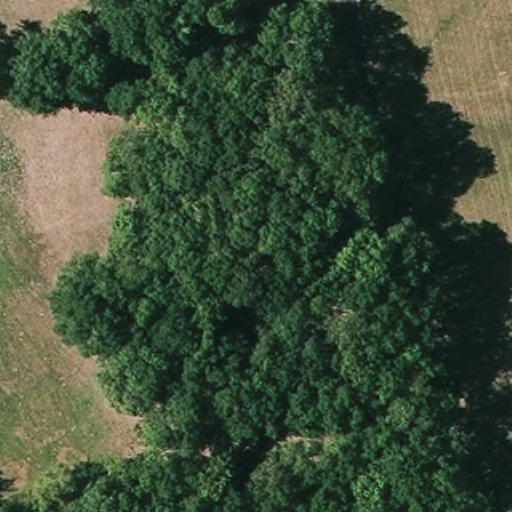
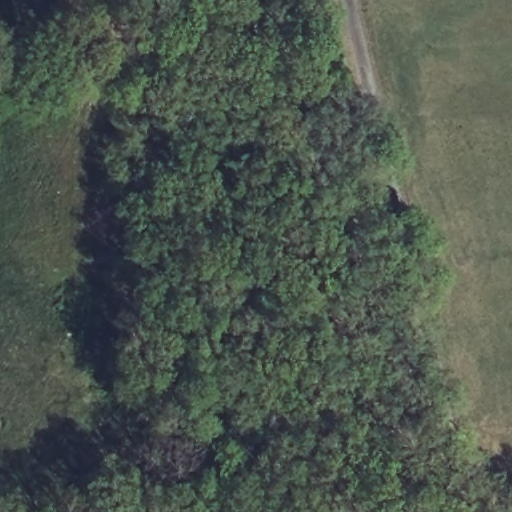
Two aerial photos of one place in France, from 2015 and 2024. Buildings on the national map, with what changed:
unchanged [(136,86),(133,89),(129,89),(125,87),(123,84),(124,77),(129,74),(136,76),(138,79),(136,86)]

